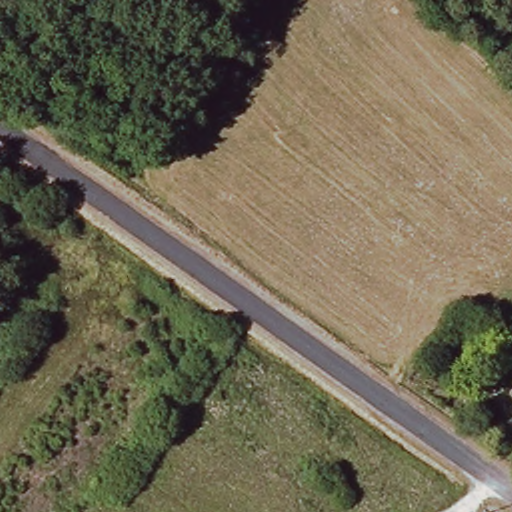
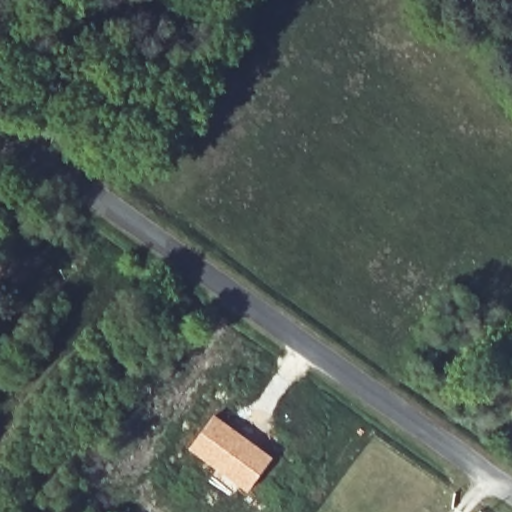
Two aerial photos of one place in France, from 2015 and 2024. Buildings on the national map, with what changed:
new [(512,367),(512,420),(491,405),(512,367)]
new [(213,414),(273,458),(246,494),(237,488),(230,497),(207,478),(213,469),(187,449),(213,414)]

